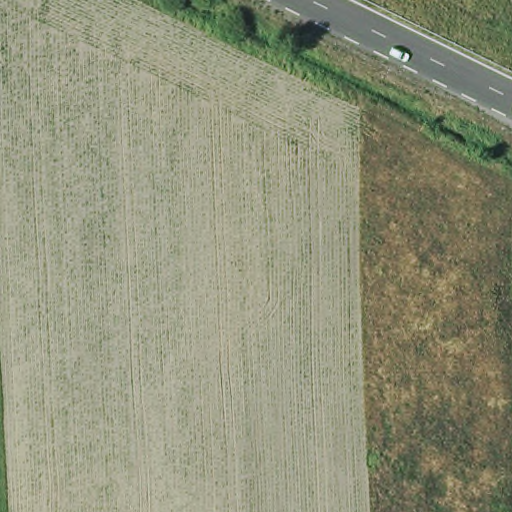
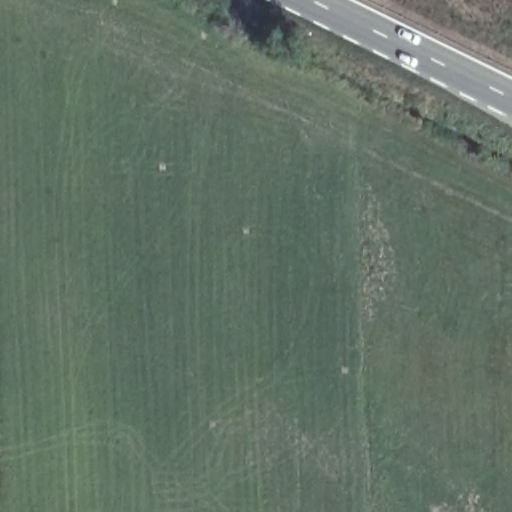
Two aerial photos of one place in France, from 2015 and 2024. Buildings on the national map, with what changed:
[]

